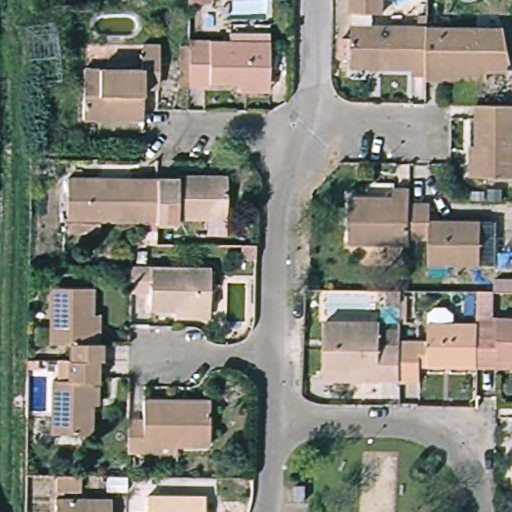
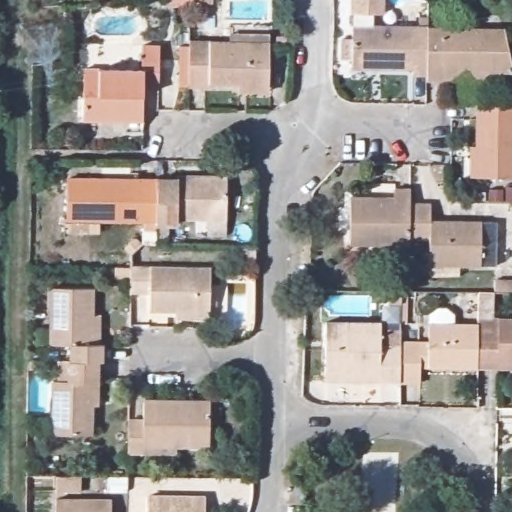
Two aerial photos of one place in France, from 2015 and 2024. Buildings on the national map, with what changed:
unchanged [(351,0),(380,0),(380,4),(371,3),(370,23),(429,26),(429,30),(429,77),(407,76),(408,70),(348,67),(348,60),(339,60),(340,40),(349,40),(351,0)]
unchanged [(448,84),(429,83),(429,77),(429,30),(506,31),(512,62),(512,74),(489,74),(489,84),(448,84)]
unchanged [(235,94),(235,80),(211,79),(210,87),(190,87),(176,86),(176,49),(190,50),(190,40),(268,41),(268,81),(268,94),(235,94)]
unchanged [(141,120),(80,119),(81,67),(139,67),(139,41),(158,41),(157,81),(141,81),(141,108),(141,120)]
unchanged [(470,177),(474,103),(512,103),(512,180),(470,177)]
unchanged [(65,222),(66,177),(136,176),(136,186),(159,186),(158,219),(158,223),(65,222)]
unchanged [(228,176),(228,221),(158,219),(159,186),(160,176),(228,176)]
unchanged [(410,198),(409,236),(409,241),(346,241),(348,189),(363,188),(364,194),(390,195),(390,182),(411,183),(410,198)]
unchanged [(430,198),(429,215),(481,217),(480,264),(428,262),(429,236),(409,236),(410,198),(430,198)]
unchanged [(173,321),(174,308),(146,307),(148,293),(130,292),(130,282),(111,281),(111,267),(130,268),(130,271),(210,274),(210,310),(209,323),(173,321)]
unchanged [(401,290),(400,302),(388,302),(388,290),(401,290)]
unchanged [(95,363),(75,363),(75,346),(47,345),(48,291),(90,291),(90,345),(101,345),(100,363),(95,363)]
unchanged [(394,365),(395,348),(395,342),(416,342),(416,329),(416,317),(424,313),(434,314),(441,318),(441,330),(460,330),(460,375),(418,373),(418,385),(394,385),(394,365)]
unchanged [(315,383),(316,327),(376,328),(376,330),(395,330),(395,336),(395,342),(395,348),(394,365),(394,385),(315,383)]
unchanged [(473,341),(496,342),(496,334),(512,334),(512,372),(472,372),(473,341)]
unchanged [(95,363),(96,381),(96,413),(85,413),(85,439),(48,437),(49,380),(68,381),(68,362),(75,363),(95,363)]
unchanged [(141,420),(141,397),(178,399),(208,400),(208,412),(207,449),(140,445),(140,458),(125,458),(125,420),(141,420)]
unchanged [(308,484),(308,501),(293,501),(293,485),(308,484)]
unchanged [(110,496),(110,512),(55,512),(55,494),(110,496)]
unchanged [(208,499),(207,512),(148,512),(148,496),(208,499)]

